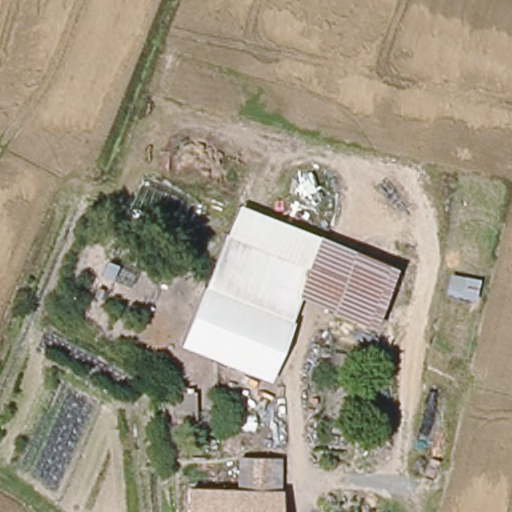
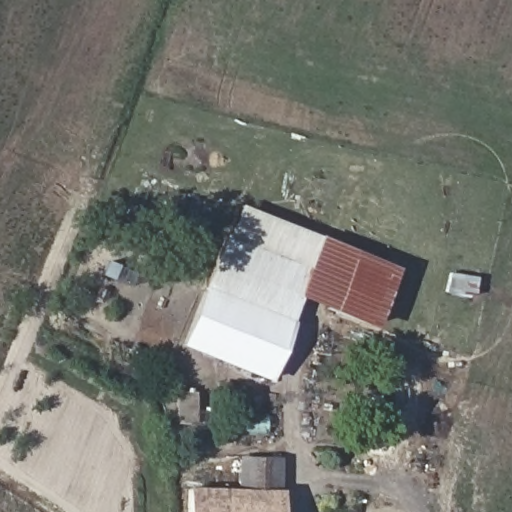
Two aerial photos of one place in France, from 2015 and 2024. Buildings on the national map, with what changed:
unchanged [(395,272),(373,329),(302,300),(269,381),(181,347),(239,206),(395,272)]
unchanged [(206,418),(189,417),(190,388),(208,390),(206,418)]
unchanged [(279,467),(278,495),(239,492),(242,464),(279,467)]
unchanged [(192,490),(239,492),(278,495),(277,512),(191,512),(192,490)]

